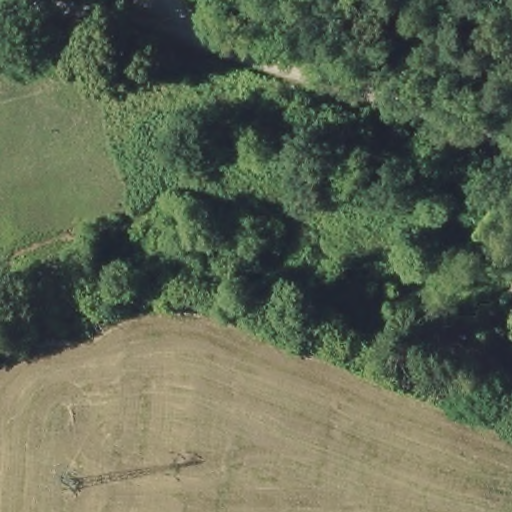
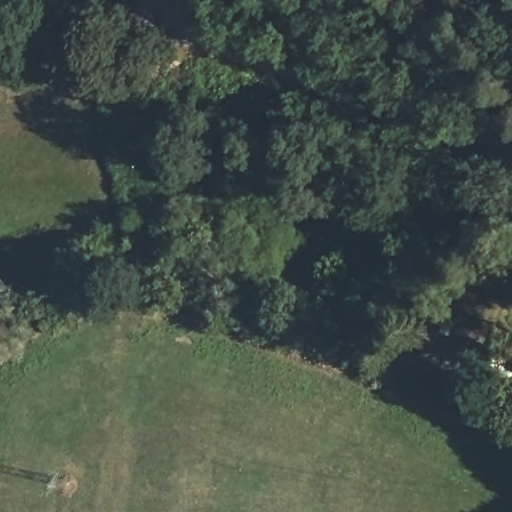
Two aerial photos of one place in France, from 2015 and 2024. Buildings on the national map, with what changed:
unchanged [(389,328),(394,316),(404,319),(409,305),(456,322),(439,344),(389,328)]

